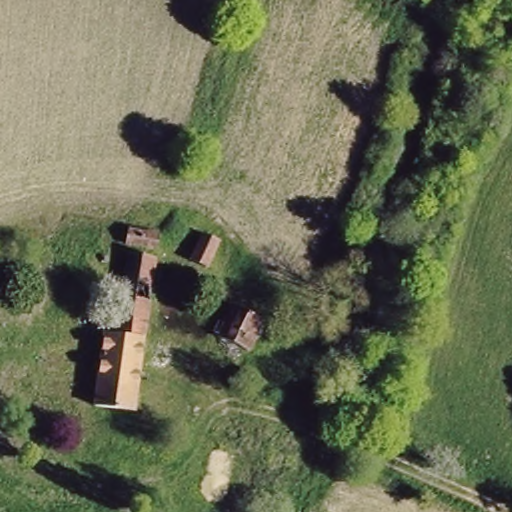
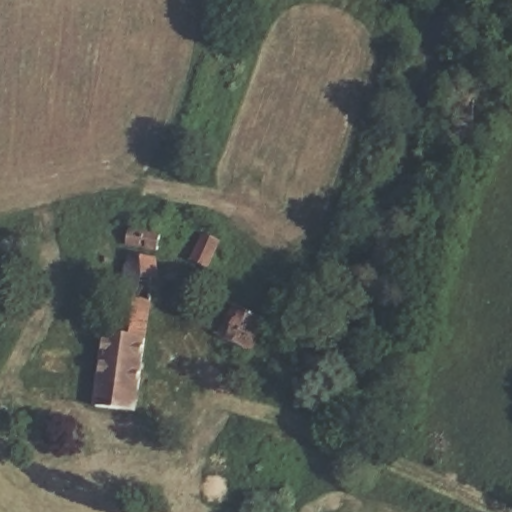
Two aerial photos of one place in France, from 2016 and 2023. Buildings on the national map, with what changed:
unchanged [(153,249),(124,244),(127,229),(155,234),(153,249)]
unchanged [(217,241),(205,266),(189,259),(202,233),(217,241)]
unchanged [(147,279),(151,280),(149,295),(146,294),(132,409),(93,404),(102,334),(113,335),(123,253),(150,256),(147,279)]
unchanged [(259,319),(245,349),(216,336),(229,307),(259,319)]
unchanged [(235,388),(242,373),(252,376),(246,392),(235,388)]

